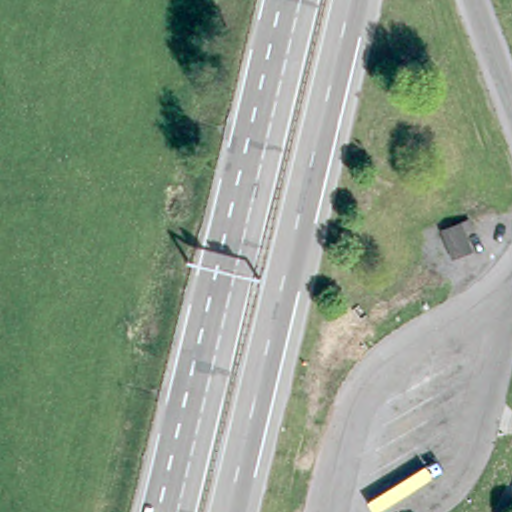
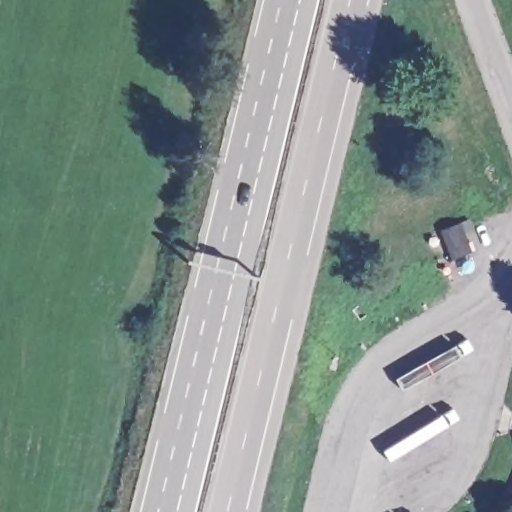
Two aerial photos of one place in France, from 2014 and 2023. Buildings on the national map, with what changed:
[]

